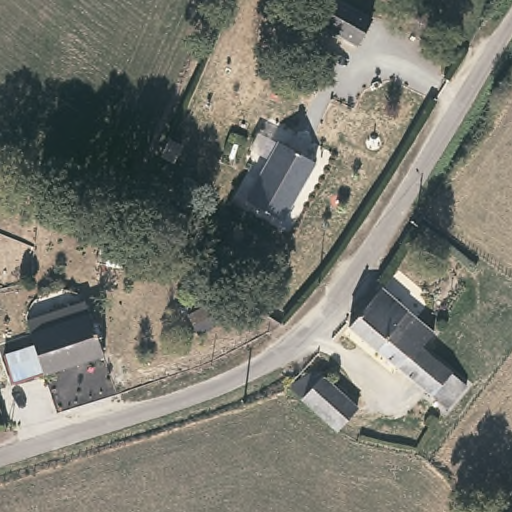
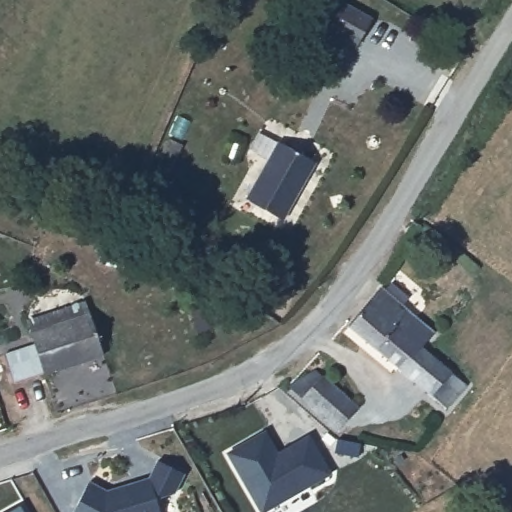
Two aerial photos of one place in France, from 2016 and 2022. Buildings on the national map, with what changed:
unchanged [(360,37),(328,19),(339,0),(355,0),(375,12),(360,37)]
unchanged [(319,160),(289,217),(253,198),(284,141),(319,160)]
unchanged [(468,390),(463,396),(445,419),(430,407),(346,337),(383,292),(430,330),(416,347),(425,354),(468,390)]
unchanged [(108,358),(46,379),(33,338),(94,319),(108,358)]
unchanged [(338,405),(345,397),(355,406),(350,413),(353,419),(337,440),(282,392),(312,383),(338,405)]
new [(265,512),(261,512),(226,454),(266,431),(278,452),(309,435),(331,474),(265,512)]
new [(107,491),(147,478),(157,461),(183,474),(175,493),(158,498),(162,512),(75,512),(74,511),(89,481),(107,491)]
new [(19,505),(24,512),(7,512),(19,505)]

